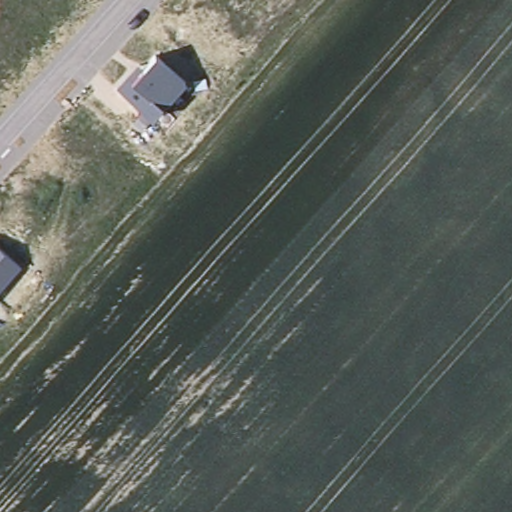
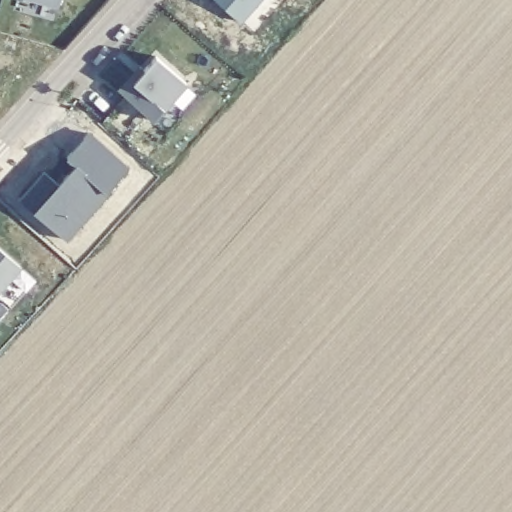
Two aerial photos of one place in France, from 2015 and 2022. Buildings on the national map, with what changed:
new [(37,0),(59,0),(57,6),(37,0)]
new [(242,25),(215,0),(265,0),(242,25)]
unchanged [(187,84),(152,123),(116,86),(137,62),(144,68),(156,54),(187,84)]
new [(129,170),(68,242),(35,215),(75,170),(65,161),(89,133),(129,170)]
unchanged [(22,268),(0,294),(0,248),(22,268)]

